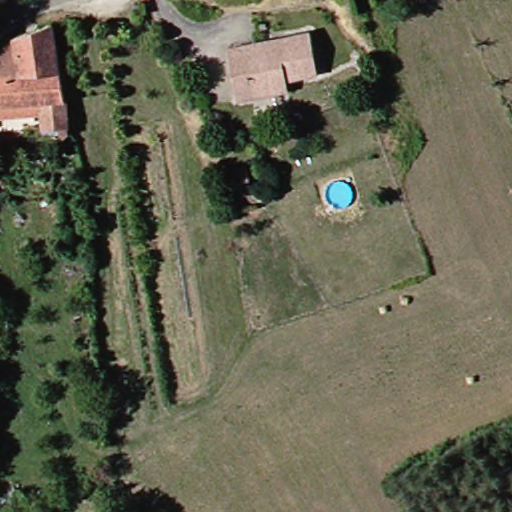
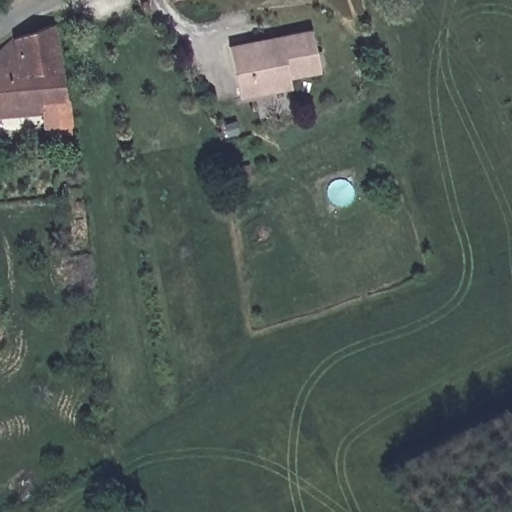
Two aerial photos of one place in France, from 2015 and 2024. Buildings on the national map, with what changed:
unchanged [(28,123),(22,95),(0,100),(0,31),(3,28),(32,13),(48,101),(54,123),(42,125),(41,120),(28,123)]
unchanged [(232,102),(231,96),(219,48),(256,40),(268,37),(301,30),(306,53),(314,51),(318,65),(309,68),(311,75),(281,83),(283,91),(232,102)]

